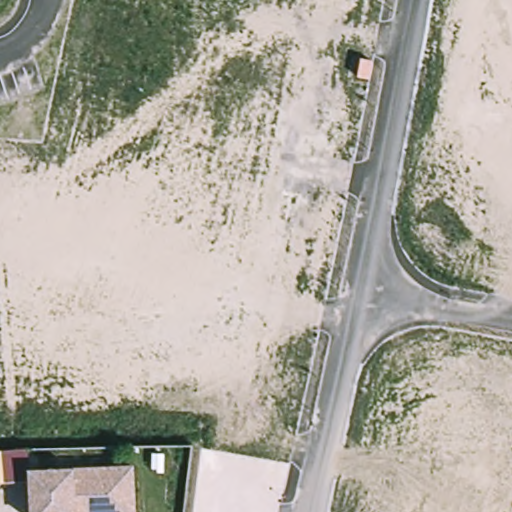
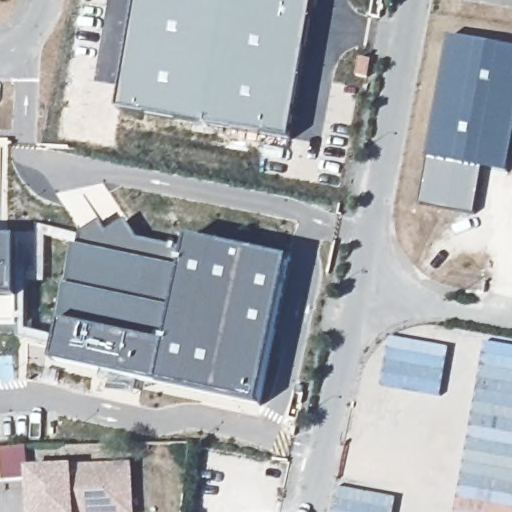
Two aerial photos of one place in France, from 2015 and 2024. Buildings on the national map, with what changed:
new [(139,0),(317,0),(293,139),(119,111),(139,0)]
new [(512,49),(512,153),(508,174),(484,169),(475,215),(420,205),(427,159),(449,39),(512,49)]
new [(292,260),(261,406),(159,383),(55,362),(64,324),(68,286),(75,246),(80,235),(100,221),(108,233),(127,220),(139,239),(187,249),(190,239),(292,260)]
new [(0,327),(0,240),(19,240),(18,299),(19,327),(0,327)]
new [(488,340),(512,345),(512,512),(456,512),(488,340)]
unchanged [(70,512),(27,512),(24,463),(125,456),(128,493),(129,508),(70,512)]

